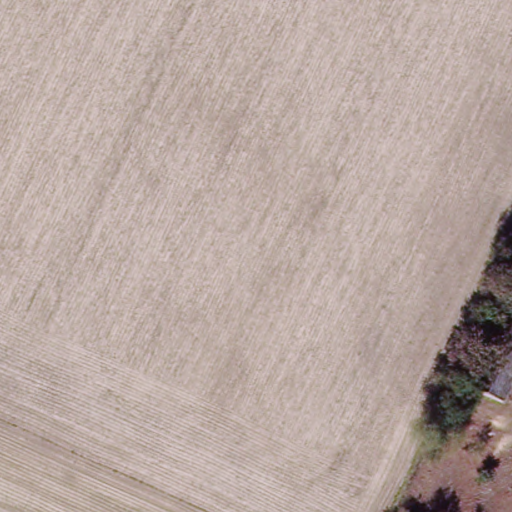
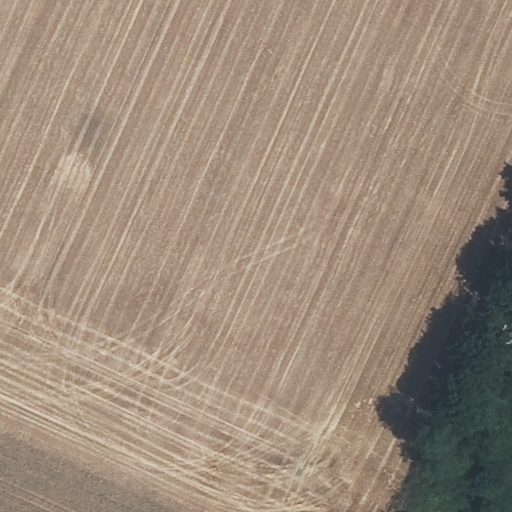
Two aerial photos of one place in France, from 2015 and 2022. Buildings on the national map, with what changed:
unchanged [(495,316),(509,323),(512,318),(512,395),(503,412),(462,391),(495,316)]

